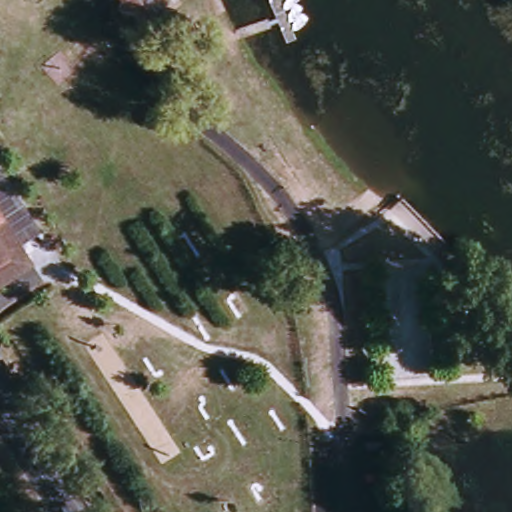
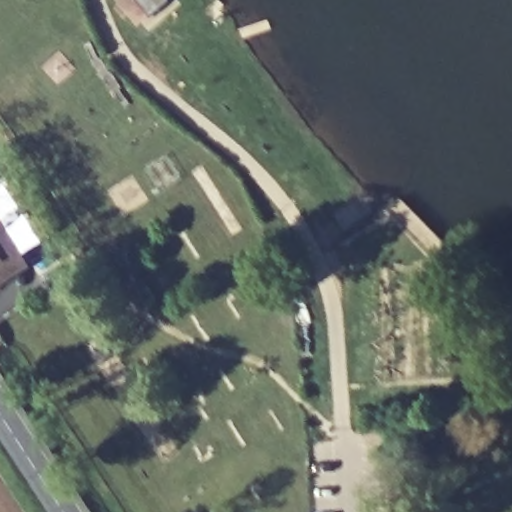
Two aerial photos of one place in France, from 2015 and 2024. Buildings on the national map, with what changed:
unchanged [(137,15),(128,2),(131,0),(172,0),(182,15),(173,21),(151,36),(137,15)]
unchanged [(27,254),(0,270),(0,209),(27,254)]

